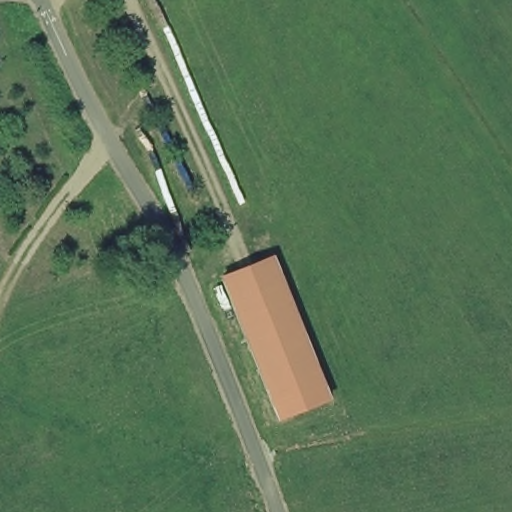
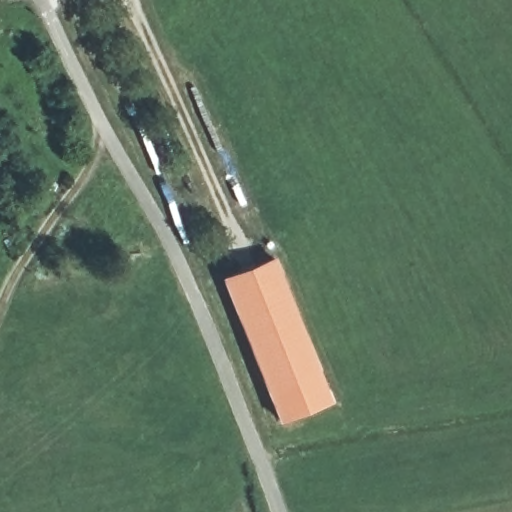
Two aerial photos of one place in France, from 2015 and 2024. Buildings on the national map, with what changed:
unchanged [(224,278),(275,258),(331,399),(280,419),(224,278)]

